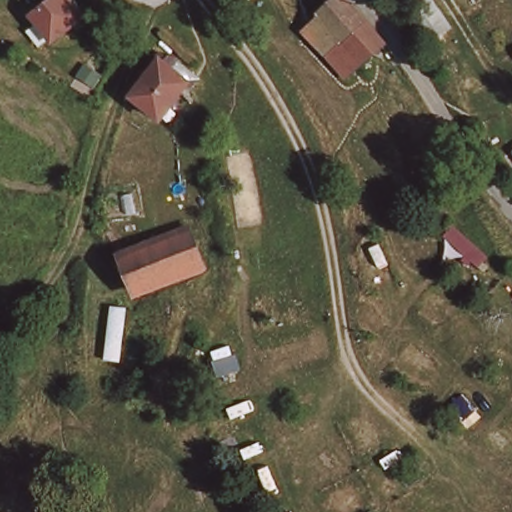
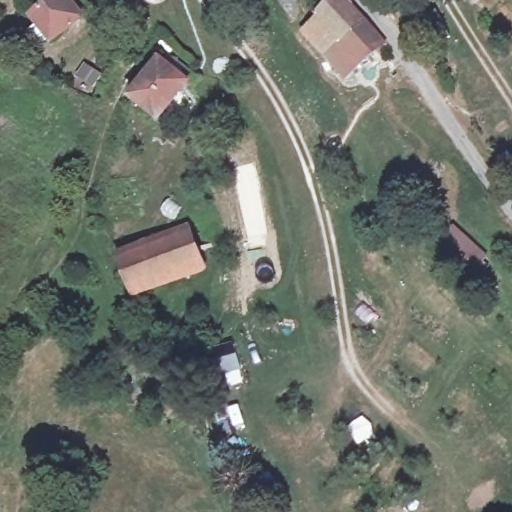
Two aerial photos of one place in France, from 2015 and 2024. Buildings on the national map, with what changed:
unchanged [(80,17),(53,42),(30,16),(49,0),(64,0),(80,17)]
unchanged [(309,37),(306,34),(323,19),(320,16),(332,5),(339,0),(351,0),(387,44),(363,66),(342,42),(324,56),(309,37)]
unchanged [(130,95),(159,52),(190,72),(162,115),(130,95)]
unchanged [(115,254),(115,253),(170,233),(189,226),(204,267),(187,273),(185,273),(131,291),(115,254)]

